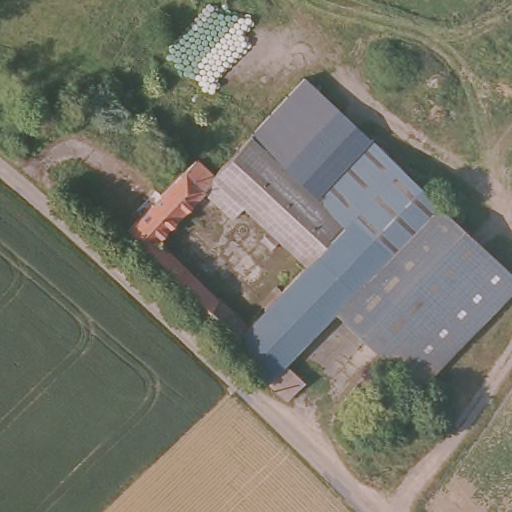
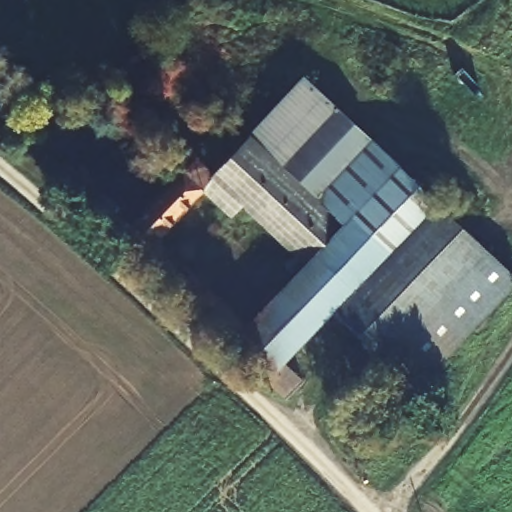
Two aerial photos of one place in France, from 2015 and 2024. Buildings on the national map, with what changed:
unchanged [(315,256),(342,228),(247,137),(302,77),(512,273),(512,292),(418,392),(335,314),(354,294),(315,256)]
unchanged [(289,362),(307,380),(282,408),(112,245),(162,193),(193,160),(210,176),(247,137),(342,228),(315,256),(354,294),(335,314),(289,362)]

